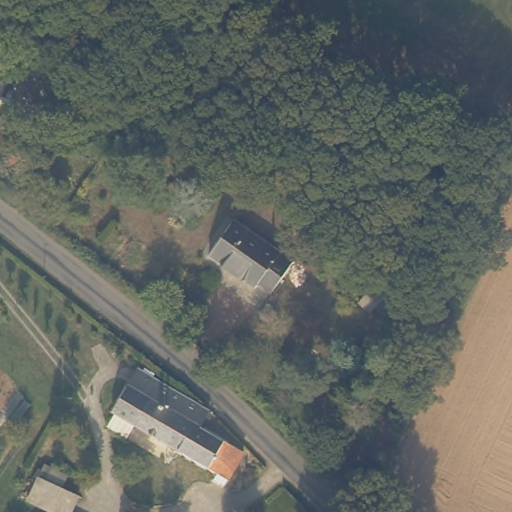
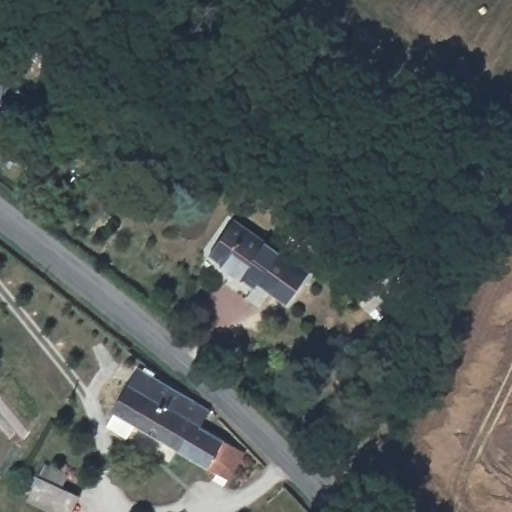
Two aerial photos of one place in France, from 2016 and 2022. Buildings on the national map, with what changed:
unchanged [(1,70),(0,75),(0,70),(1,70)]
unchanged [(317,213),(301,202),(309,193),(324,202),(317,213)]
unchanged [(282,259),(263,289),(252,281),(248,285),(207,256),(231,223),(282,259)]
unchanged [(379,263),(391,272),(360,310),(348,300),(379,263)]
unchanged [(216,479),(219,473),(135,424),(128,437),(109,426),(116,413),(113,411),(137,368),(204,406),(196,421),(244,449),(227,478),(225,483),(216,479)]
unchanged [(29,497),(46,464),(70,476),(65,487),(81,496),(73,512),(60,512),(47,506),(29,497)]

